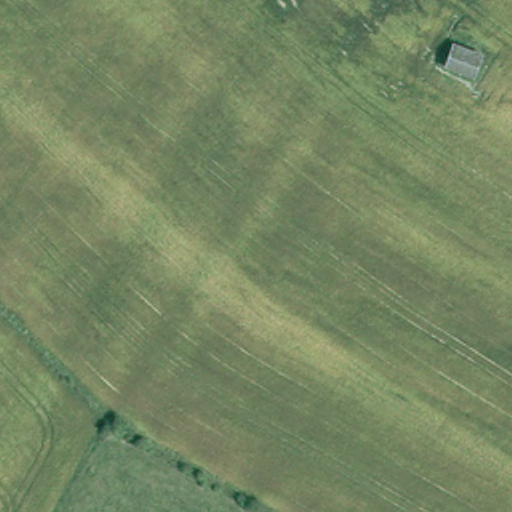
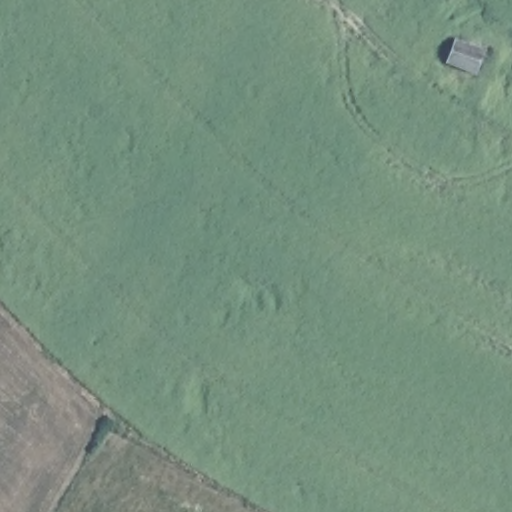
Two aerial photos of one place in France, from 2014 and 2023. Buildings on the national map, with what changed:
unchanged [(456,38),(481,48),(473,67),(449,58),(456,38)]

